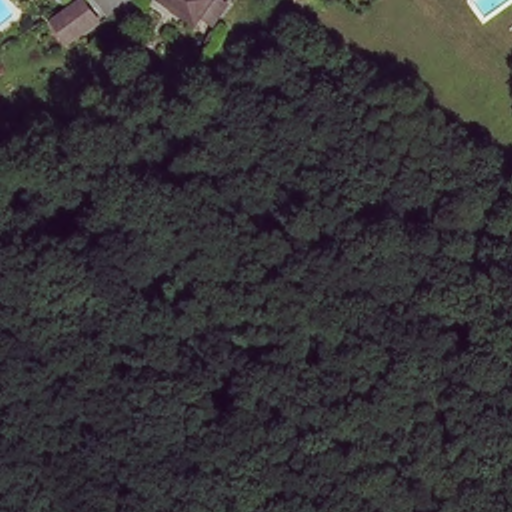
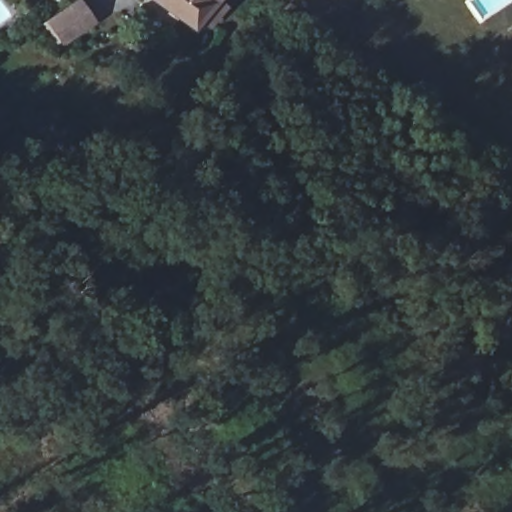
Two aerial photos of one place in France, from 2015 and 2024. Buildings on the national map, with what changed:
unchanged [(188,18),(165,1),(164,0),(218,0),(204,18),(203,19),(193,11),(188,18)]
unchanged [(76,1),(92,23),(63,43),(47,21),(76,1)]

